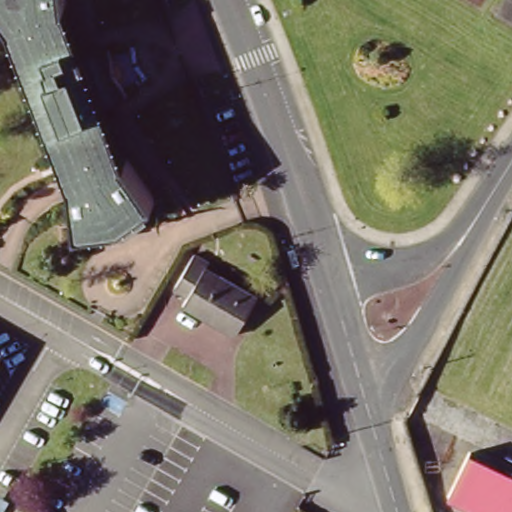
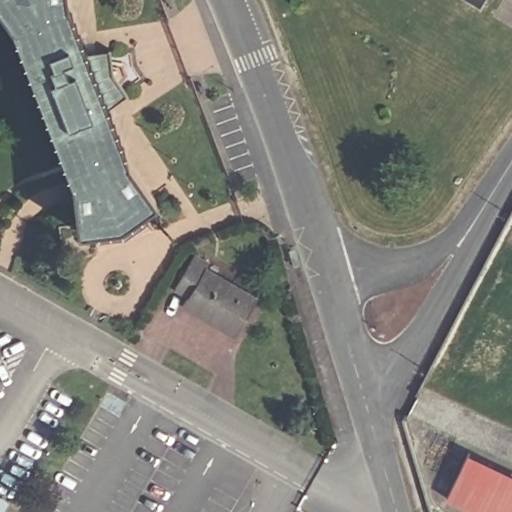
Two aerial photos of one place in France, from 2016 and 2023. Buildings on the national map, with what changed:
unchanged [(134,161),(159,198),(124,222),(80,226),(75,178),(14,24),(0,3),(0,0),(72,0),(72,3),(91,51),(116,48),(117,53),(122,73),(132,89),(134,94),(112,107),(134,161)]
unchanged [(182,284),(200,250),(216,258),(212,263),(266,290),(246,329),(193,301),(197,292),(182,284)]
unchanged [(0,349),(6,353),(0,363),(0,349)]
unchanged [(470,451),(512,472),(512,512),(482,512),(449,496),(470,451)]

